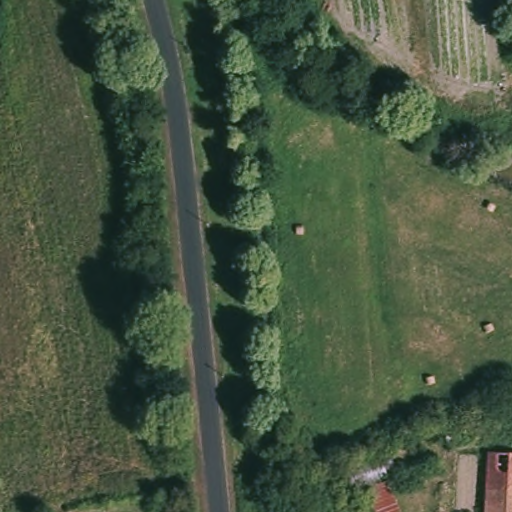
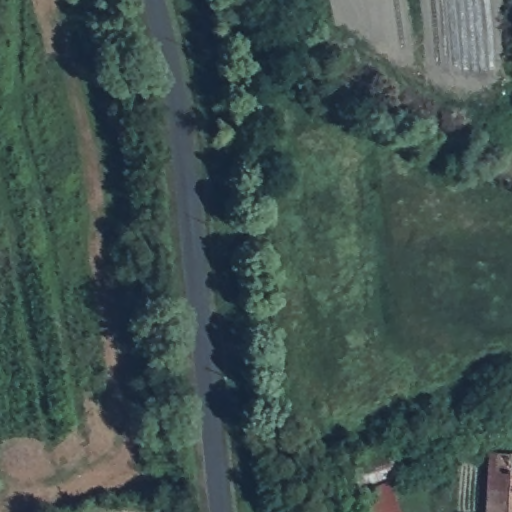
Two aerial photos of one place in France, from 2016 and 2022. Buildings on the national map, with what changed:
unchanged [(512,488),(481,488),(481,458),(512,458),(512,488)]
unchanged [(407,512),(373,512),(363,492),(392,481),(407,512)]
unchanged [(512,488),(512,512),(480,512),(481,488),(512,488)]

